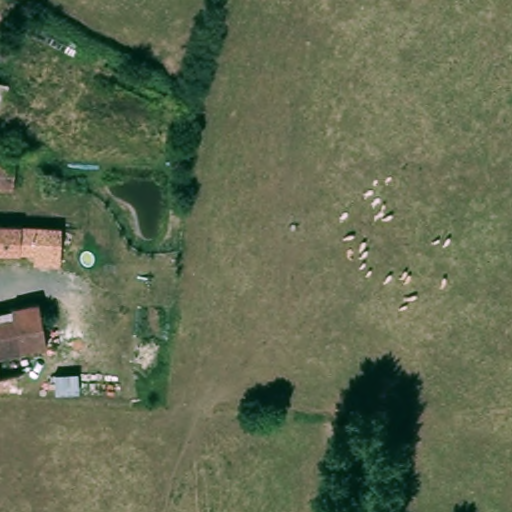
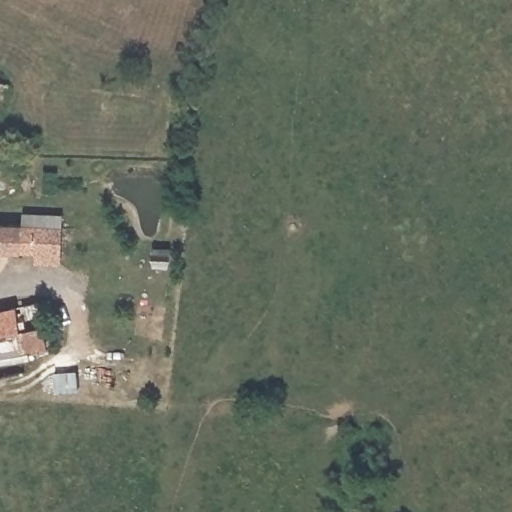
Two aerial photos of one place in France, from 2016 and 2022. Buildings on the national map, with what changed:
unchanged [(8,80),(0,112),(0,77),(8,80)]
unchanged [(13,171),(37,174),(34,196),(10,195),(11,184),(0,183),(0,152),(8,152),(13,153),(13,171)]
unchanged [(33,227),(62,228),(61,246),(61,255),(0,254),(0,226),(33,227)]
unchanged [(37,303),(45,348),(40,349),(44,371),(0,378),(0,311),(37,303)]

